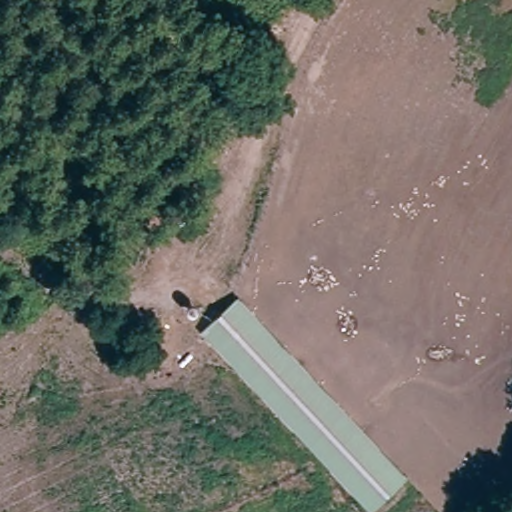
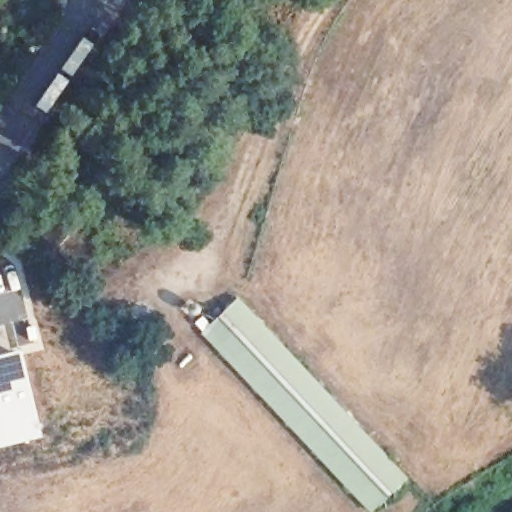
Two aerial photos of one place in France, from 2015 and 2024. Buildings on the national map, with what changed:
unchanged [(407,478),(374,512),(364,512),(200,337),(238,300),(407,478)]
new [(39,437),(0,447),(0,354),(16,350),(39,437)]

